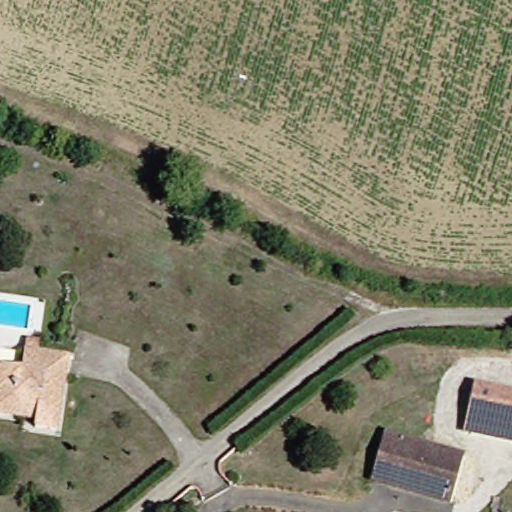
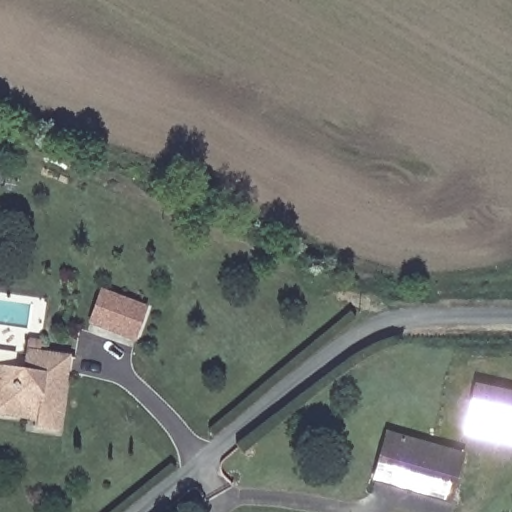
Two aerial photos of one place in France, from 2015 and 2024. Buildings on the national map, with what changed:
new [(87,323),(101,287),(147,305),(134,341),(87,323)]
unchanged [(7,413),(0,412),(0,364),(26,369),(31,335),(44,338),(43,349),(75,354),(63,431),(43,427),(43,419),(34,418),(7,413)]
unchanged [(472,386),(512,393),(512,439),(464,431),(472,386)]
unchanged [(378,481),(382,468),(391,437),(467,456),(457,498),(424,489),(422,494),(397,487),(385,483),(378,481)]

